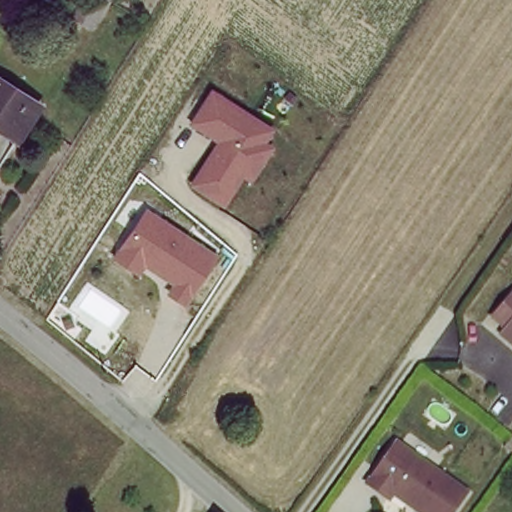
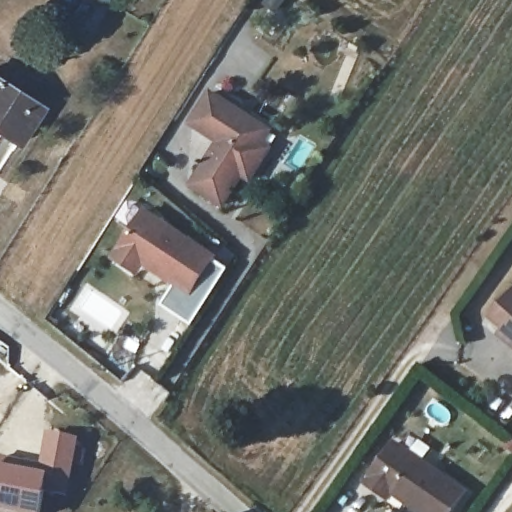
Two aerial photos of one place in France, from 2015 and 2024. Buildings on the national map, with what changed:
unchanged [(111,26),(88,13),(97,0),(128,0),(111,26)]
unchanged [(0,77),(41,101),(18,137),(0,126),(0,77)]
unchanged [(217,143),(188,125),(212,88),(276,131),(268,142),(276,148),(251,187),(241,180),(225,209),(189,185),(217,143)]
unchanged [(221,253),(184,307),(165,294),(171,284),(146,267),(138,278),(110,260),(147,208),(221,253)]
unchanged [(505,332),(509,326),(496,315),(512,297),(512,338),(505,332)]
new [(69,497),(44,493),(41,512),(0,512),(0,456),(41,465),(46,433),(80,441),(69,497)]
unchanged [(396,445),(466,493),(452,512),(421,512),(398,495),(392,501),(369,484),(396,445)]

